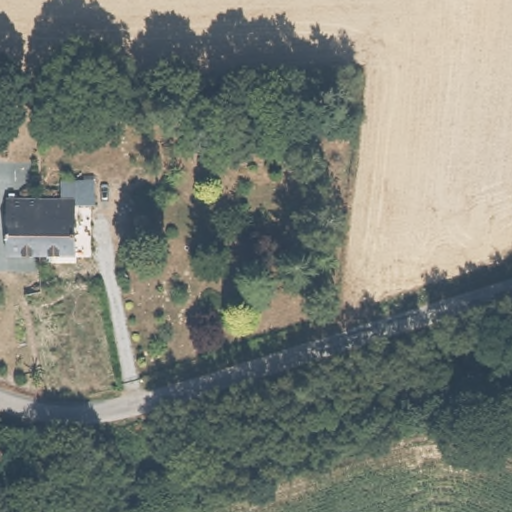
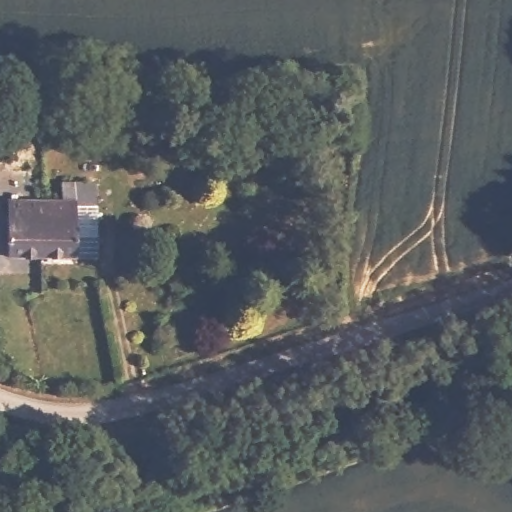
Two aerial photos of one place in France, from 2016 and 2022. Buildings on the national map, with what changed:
unchanged [(131,155),(153,152),(162,198),(139,198),(131,155)]
unchanged [(62,194),(62,173),(96,173),(95,200),(75,200),(75,257),(42,257),(42,193),(62,194)]
unchanged [(42,257),(10,256),(11,193),(42,193),(42,257)]

